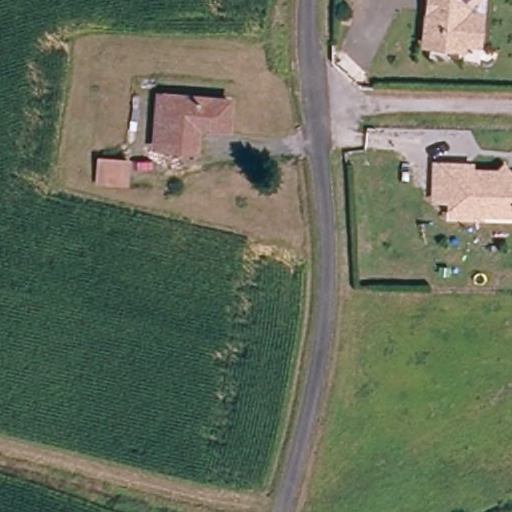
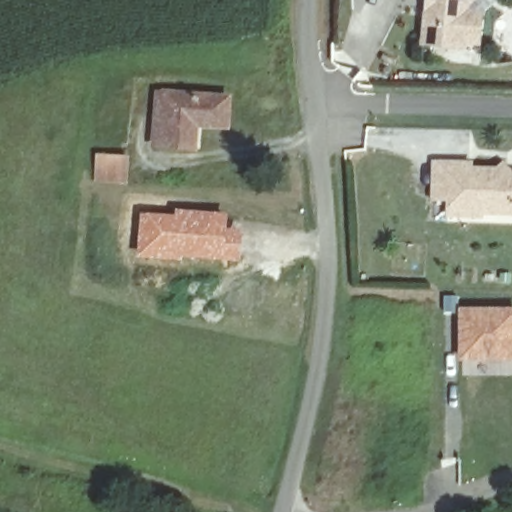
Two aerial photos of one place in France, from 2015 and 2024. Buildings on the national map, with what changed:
unchanged [(482,43),(467,41),(466,47),(427,41),(431,8),(431,0),(474,0),(470,3),(470,12),(484,14),(482,43)]
demolished [(233,119),(185,117),(184,138),(155,137),(154,97),(154,87),(233,90),(233,119)]
new [(202,129),(200,151),(152,149),(157,91),(235,96),(233,131),(202,129)]
unchanged [(124,183),(98,185),(95,158),(123,155),(124,183)]
unchanged [(436,198),(435,163),(451,164),(471,165),(471,170),(501,172),(505,168),(512,176),(512,214),(481,212),(482,215),(452,214),(452,199),(436,198)]
new [(140,211),(175,213),(176,208),(230,212),(229,227),(244,228),(241,262),(137,258),(140,211)]
new [(512,307),(512,360),(458,360),(458,306),(512,307)]

